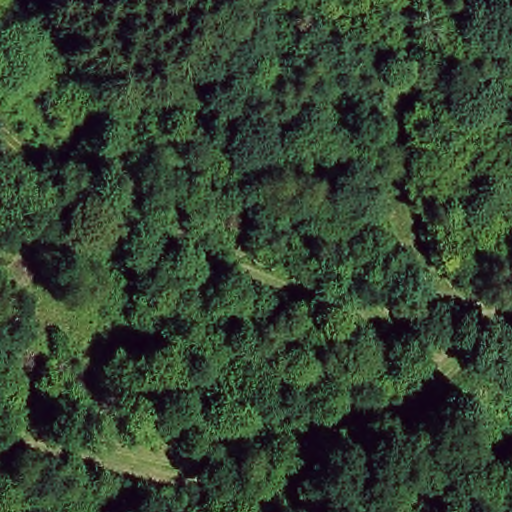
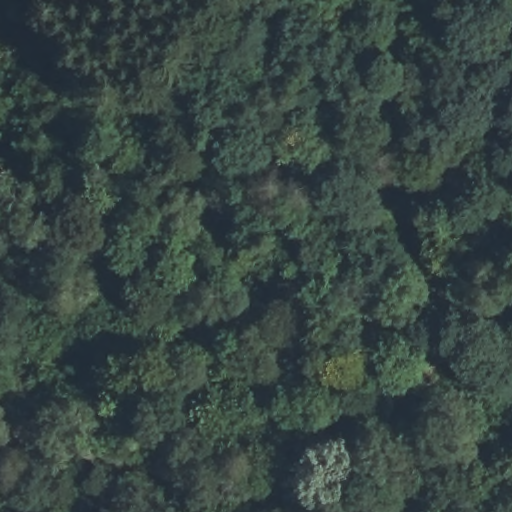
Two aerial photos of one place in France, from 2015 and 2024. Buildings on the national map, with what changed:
[]

